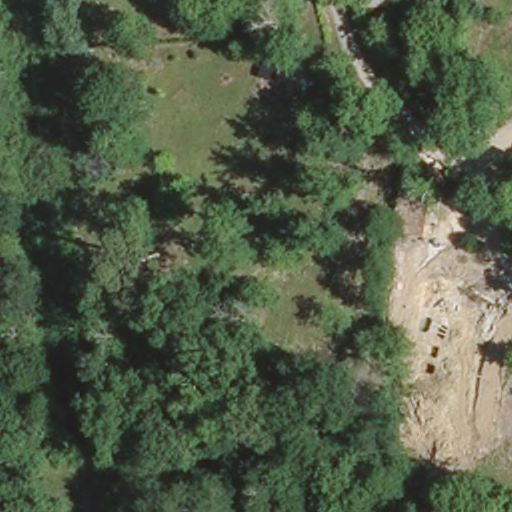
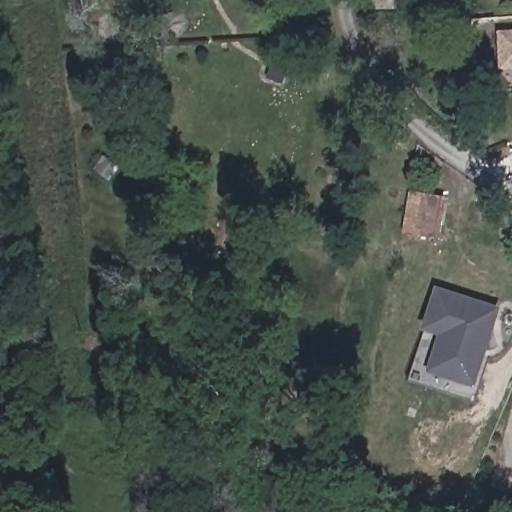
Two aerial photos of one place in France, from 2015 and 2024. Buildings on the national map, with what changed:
new [(498,69),(496,30),(512,29),(512,69),(498,69)]
unchanged [(438,188),(436,217),(403,214),(406,186),(438,188)]
new [(427,370),(438,335),(421,329),(436,285),(500,307),(474,386),(427,370)]

